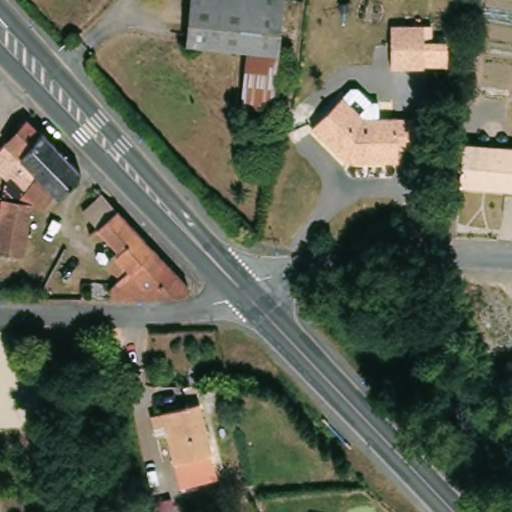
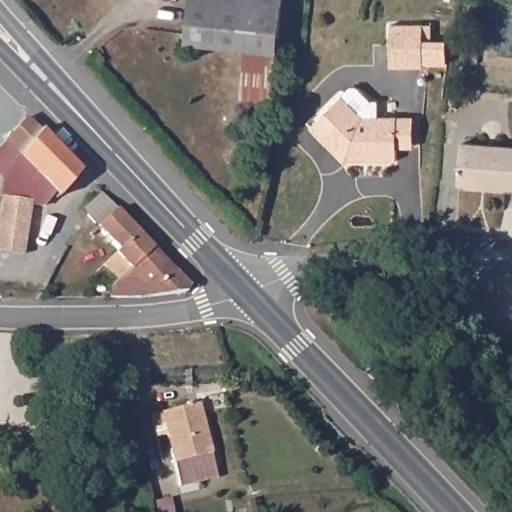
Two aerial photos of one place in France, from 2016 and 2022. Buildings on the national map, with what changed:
unchanged [(242,101),(249,54),(189,45),(196,0),(286,0),(282,34),(272,106),(271,122),(240,117),(242,101)]
unchanged [(420,31),(418,73),(386,72),(387,30),(420,31)]
unchanged [(314,129),(346,99),(366,120),(367,121),(400,122),(415,122),(414,152),(399,152),(399,165),(346,164),(340,157),(332,148),(314,129)]
unchanged [(60,195),(56,190),(47,204),(32,200),(23,253),(0,248),(0,223),(5,177),(0,172),(0,147),(26,117),(38,129),(41,127),(80,169),(60,195)]
unchanged [(462,143),(512,147),(512,187),(459,183),(462,143)]
unchanged [(69,210),(96,185),(118,210),(98,228),(91,235),(69,210)]
unchanged [(124,275),(106,265),(120,251),(98,228),(118,210),(154,248),(124,275)]
unchanged [(149,298),(112,297),(114,284),(124,275),(154,248),(188,289),(149,298)]
unchanged [(199,400),(211,441),(213,450),(207,452),(210,465),(187,472),(183,459),(181,460),(178,460),(170,432),(158,435),(152,414),(170,410),(199,400)]

